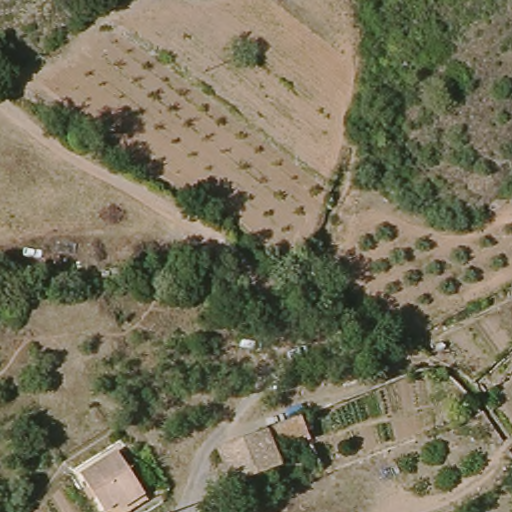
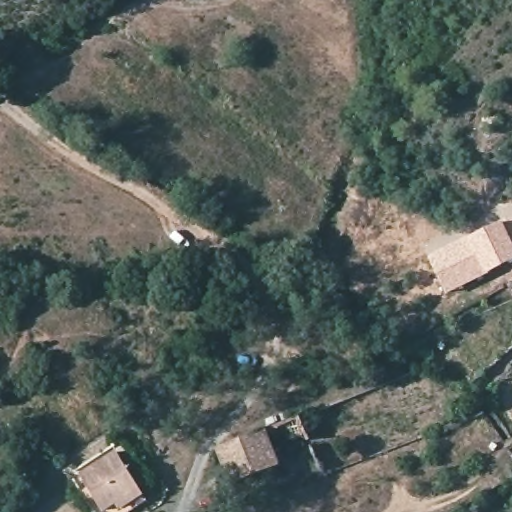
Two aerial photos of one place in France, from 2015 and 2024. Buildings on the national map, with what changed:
new [(512,234),(507,221),(512,220),(512,234)]
new [(512,234),(512,264),(447,294),(429,254),(507,221),(512,234)]
unchanged [(230,481),(217,445),(265,426),(300,413),(310,437),(275,450),(278,463),(230,481)]
unchanged [(100,507),(77,471),(112,449),(136,485),(141,495),(120,509),(116,512),(104,512),(100,507)]

